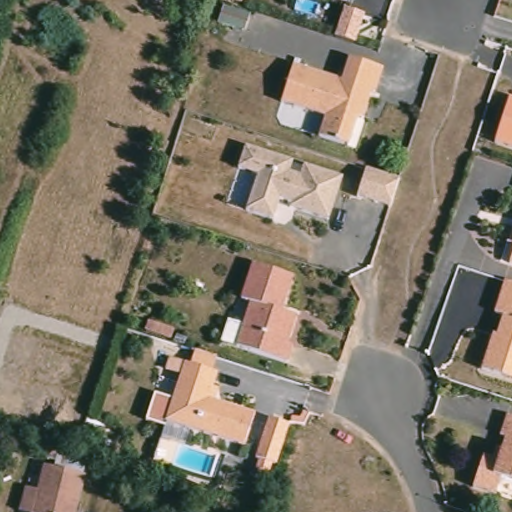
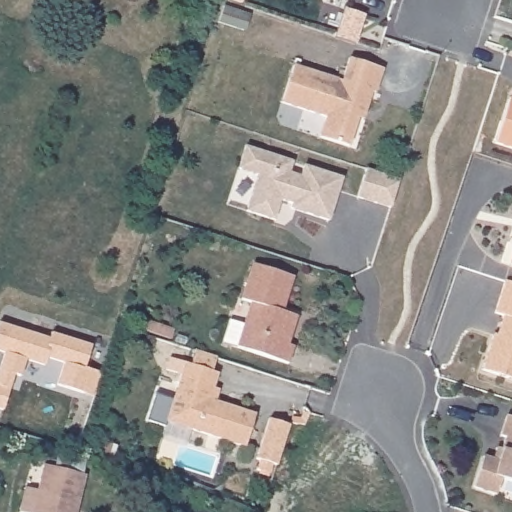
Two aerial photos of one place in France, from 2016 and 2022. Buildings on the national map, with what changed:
new [(344,8),(364,14),(354,44),(335,37),(344,8)]
unchanged [(355,116),(346,145),(317,136),(323,116),(279,102),(291,64),(340,79),(347,56),(381,67),(373,91),(369,90),(360,117),(355,116)]
unchanged [(507,100),(512,101),(512,151),(493,145),(507,100)]
unchanged [(291,160),(288,171),(299,175),(303,164),(341,176),(327,219),(289,207),(290,202),(279,199),(272,219),(245,210),(257,174),(237,167),(244,145),(291,160)]
unchanged [(393,182),(384,211),(351,200),(360,171),(393,182)]
unchanged [(509,261),(512,248),(512,262),(509,261)]
unchanged [(292,273),(281,308),(296,313),(287,342),(293,343),(287,362),(236,345),(251,300),(241,297),(252,261),(292,273)]
unchanged [(480,370),(492,332),(496,332),(502,312),(494,310),(504,277),(512,280),(512,380),(480,370)]
new [(0,350),(0,322),(49,338),(51,332),(91,346),(84,368),(90,370),(100,373),(93,397),(82,393),(56,385),(64,362),(46,357),(44,365),(25,358),(20,376),(13,373),(9,388),(1,409),(0,409),(0,366),(5,352),(0,350)]
unchanged [(192,348),(211,355),(206,369),(213,371),(208,386),(214,387),(210,399),(251,412),(240,445),(161,420),(177,372),(161,367),(165,356),(180,361),(187,363),(192,348)]
unchanged [(496,446),(501,447),(505,435),(499,432),(506,412),(512,415),(512,480),(500,477),(495,492),(472,485),(482,453),(492,457),(496,446)]
unchanged [(289,423),(277,464),(257,458),(269,417),(289,423)]
unchanged [(85,475),(79,502),(77,512),(32,512),(44,465),(85,475)]

